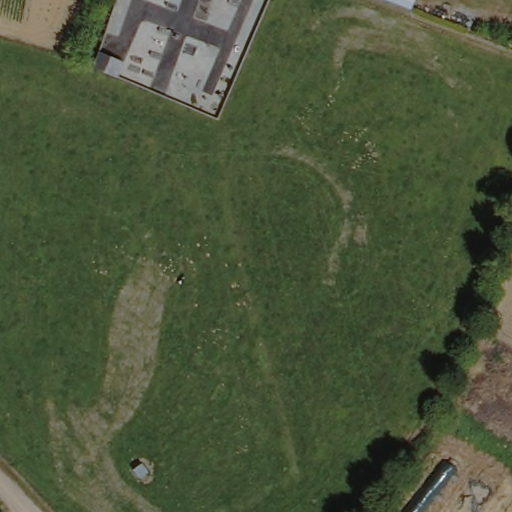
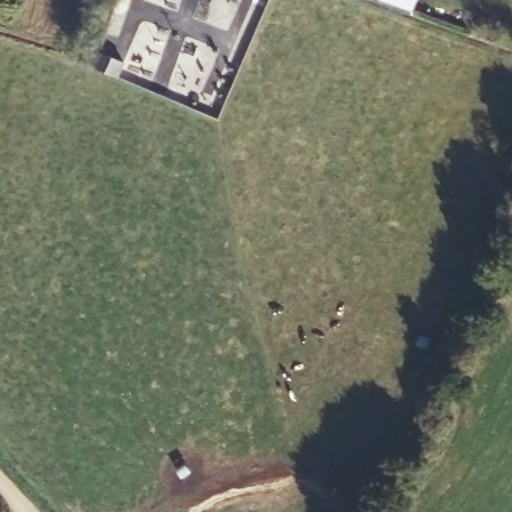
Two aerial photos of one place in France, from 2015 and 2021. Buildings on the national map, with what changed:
unchanged [(431,0),(422,21),(373,0),(431,0)]
unchanged [(92,65),(98,48),(124,60),(118,76),(92,65)]

